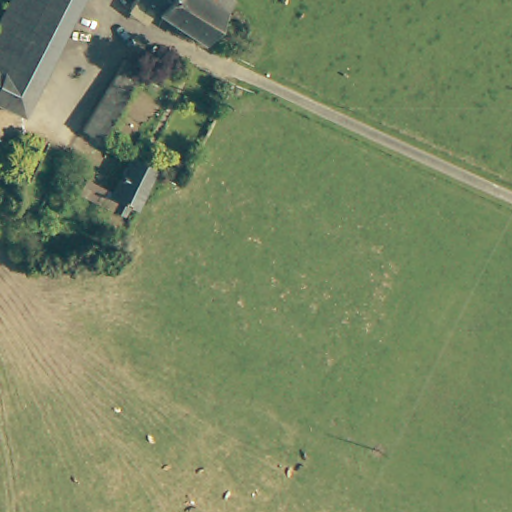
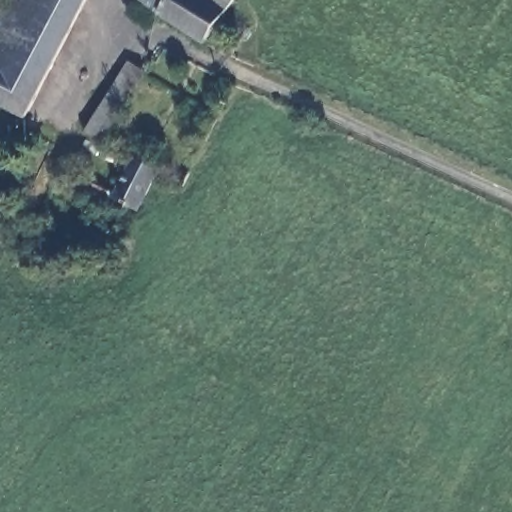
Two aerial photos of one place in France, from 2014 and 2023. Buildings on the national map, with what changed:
unchanged [(5,0),(78,0),(28,119),(0,105),(0,9),(5,0)]
unchanged [(221,13),(205,43),(204,45),(141,0),(227,0),(228,1),(221,13)]
unchanged [(104,148),(84,138),(121,64),(140,73),(104,148)]
unchanged [(121,187),(137,152),(163,162),(145,197),(144,196),(142,195),(135,210),(87,190),(93,178),(121,187)]

